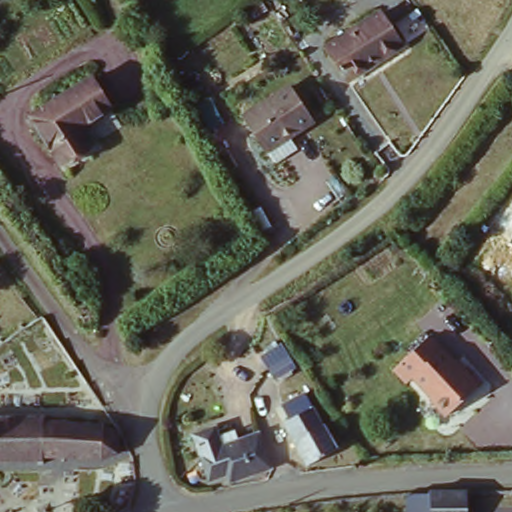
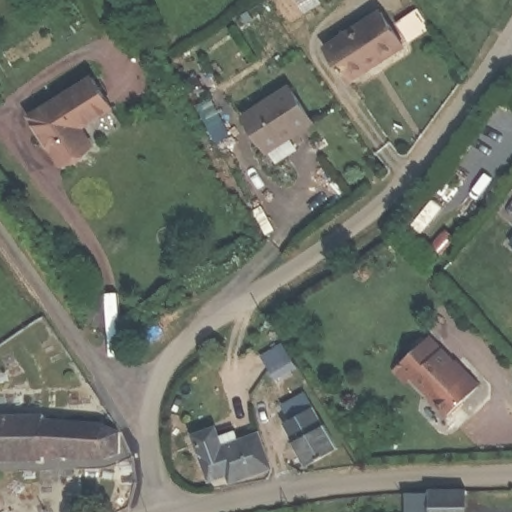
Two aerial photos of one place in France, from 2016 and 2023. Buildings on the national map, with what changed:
unchanged [(408,48),(397,29),(420,13),(432,33),(408,48)]
unchanged [(402,50),(348,83),(327,48),(379,15),(402,50)]
unchanged [(111,108),(81,126),(91,144),(61,163),(32,116),(94,81),(111,108)]
unchanged [(318,124),(271,153),(249,121),(295,90),(318,124)]
unchanged [(512,240),(512,242),(511,241),(512,240)]
unchanged [(428,334),(458,369),(459,368),(474,386),(442,414),(426,396),(428,394),(410,373),(403,379),(391,365),(428,334)]
unchanged [(291,442),(298,436),(282,404),(306,394),(321,424),(335,448),(307,468),(305,465),(291,442)]
unchanged [(124,440),(125,442),(125,460),(107,466),(46,464),(46,470),(0,470),(0,419),(50,420),(51,426),(94,429),(124,440)]
unchanged [(272,478),(231,491),(227,478),(206,485),(192,444),(213,437),(219,456),(261,445),(272,478)]
unchanged [(469,512),(411,512),(412,499),(418,497),(470,498),(469,512)]

